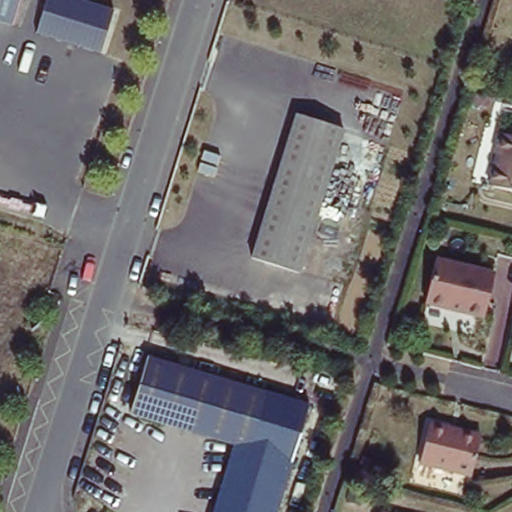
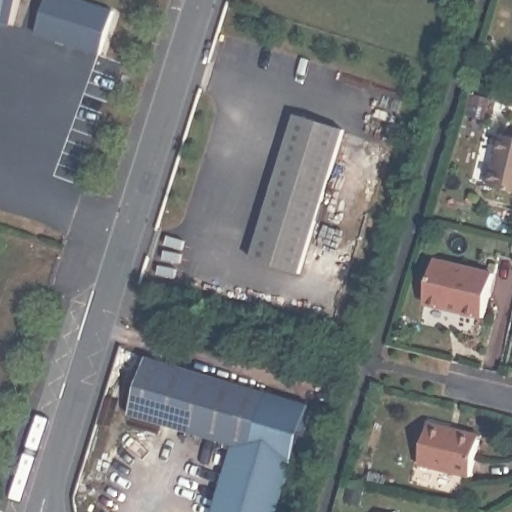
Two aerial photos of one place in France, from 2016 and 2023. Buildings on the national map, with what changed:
unchanged [(0,22),(0,0),(19,0),(11,25),(0,22)]
unchanged [(104,0),(119,5),(105,48),(41,28),(50,0),(104,0)]
unchanged [(342,129),(298,272),(250,257),(295,114),(342,129)]
unchanged [(512,190),(490,185),(498,154),(495,153),(500,133),(512,136),(512,190)]
unchanged [(491,274),(482,319),(423,307),(433,261),(491,274)]
unchanged [(266,394),(249,451),(130,414),(147,358),(266,394)]
unchanged [(308,405),(277,512),(213,512),(234,446),(249,451),(266,394),(308,405)]
unchanged [(480,431),(480,436),(470,473),(418,459),(429,418),(449,424),(480,431)]

